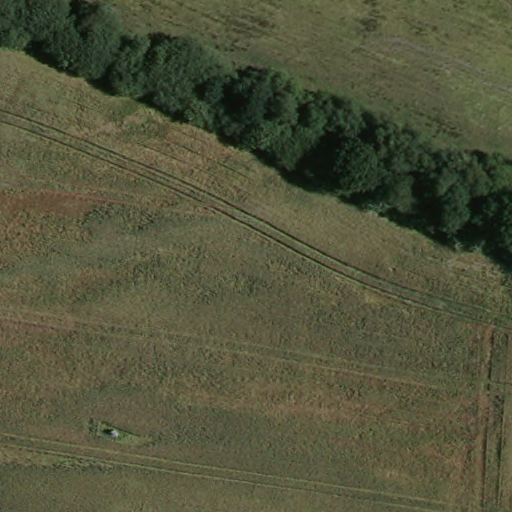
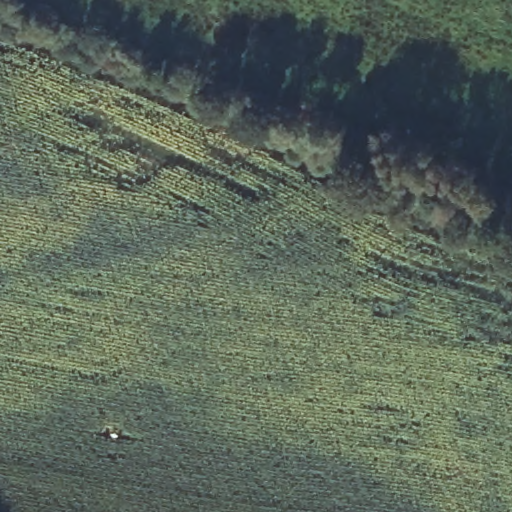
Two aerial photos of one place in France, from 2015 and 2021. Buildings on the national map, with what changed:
[]

